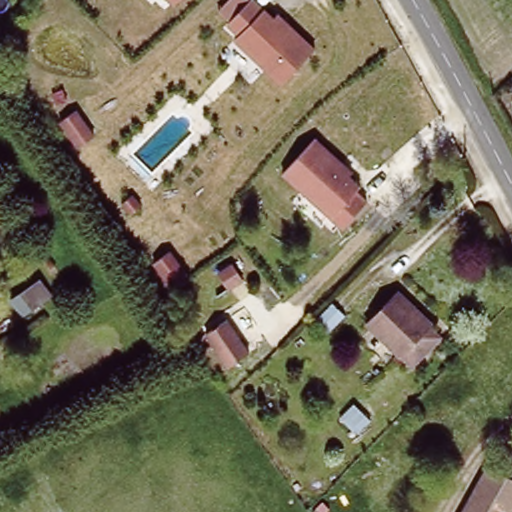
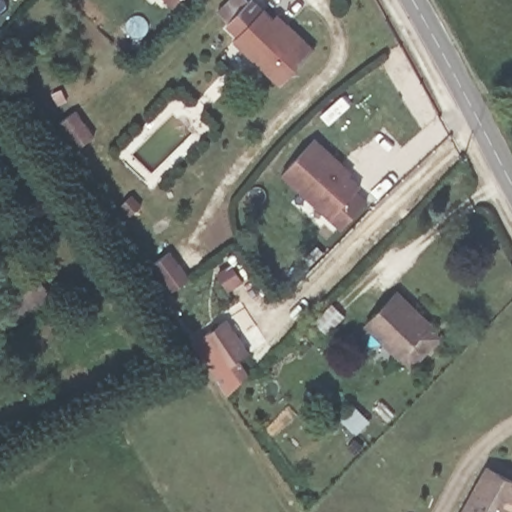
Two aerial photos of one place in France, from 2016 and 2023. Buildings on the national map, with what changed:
unchanged [(167,0),(180,0),(173,7),(167,0)]
unchanged [(278,11),(313,47),(280,84),(235,39),(237,36),(226,21),(227,19),(217,8),(225,0),(260,0),(275,14),(278,11)]
unchanged [(355,170),(352,174),(362,184),(357,190),(368,202),(342,229),(280,173),(314,134),(355,170)]
unchanged [(187,274),(170,288),(149,260),(167,248),(187,274)]
unchanged [(40,276),(52,289),(17,313),(7,298),(40,276)]
unchanged [(427,323),(425,325),(433,334),(406,362),(397,354),(365,320),(395,290),(427,323)]
unchanged [(246,352),(225,367),(197,330),(220,319),(246,352)]
unchanged [(363,418),(350,432),(332,413),(345,399),(363,418)]
unchanged [(472,484),(510,504),(505,512),(458,512),(472,484)]

